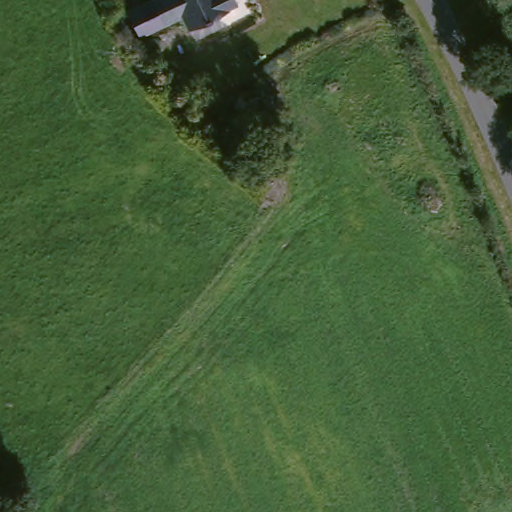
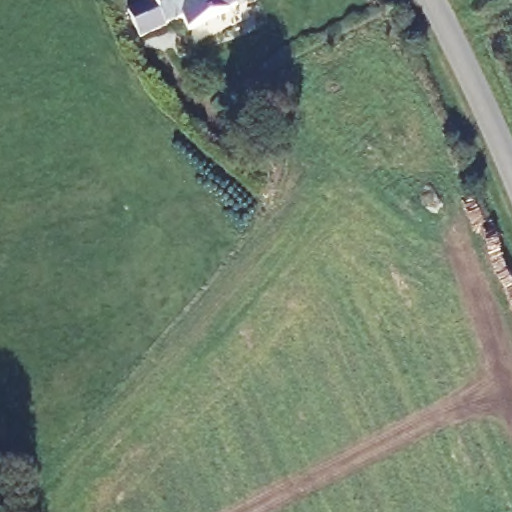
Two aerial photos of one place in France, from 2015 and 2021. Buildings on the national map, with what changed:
unchanged [(242,0),(191,29),(184,17),(166,27),(141,41),(127,15),(152,1),(151,0),(241,0),(242,0)]

